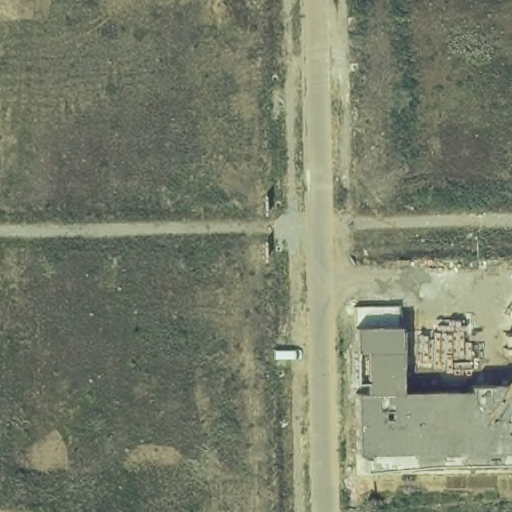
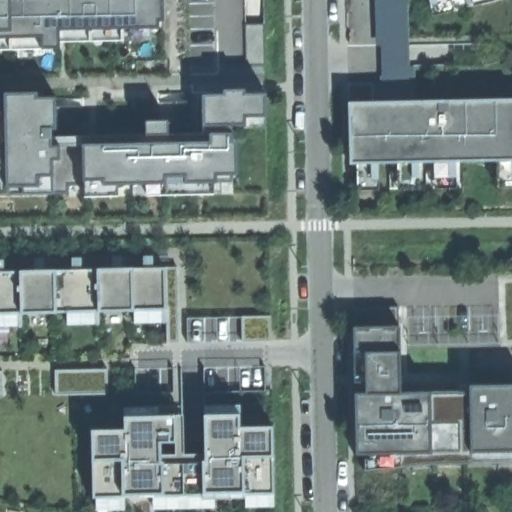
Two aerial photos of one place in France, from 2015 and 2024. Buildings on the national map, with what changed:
new [(165,26),(160,26),(160,33),(152,34),(152,45),(61,47),(60,53),(42,54),(41,42),(0,43),(0,0),(164,0),(165,26)]
new [(387,82),(387,46),(375,45),(375,0),(407,0),(408,37),(413,38),(415,100),(512,99),(512,186),(497,186),(497,161),(456,162),(456,187),(436,188),(435,162),(420,163),(419,188),(399,189),(398,163),(378,163),(378,189),(358,189),(357,164),(350,164),(348,84),(387,82)]
new [(454,10),(434,15),(430,0),(452,0),(454,10)]
new [(495,0),(475,5),(473,0),(494,0),(495,0)]
new [(265,24),(265,65),(247,65),(245,24),(265,24)]
new [(482,44),(483,63),(455,64),(454,45),(482,44)]
new [(5,98),(7,97),(7,93),(40,93),(41,97),(56,96),(57,129),(52,130),(52,136),(145,134),(147,120),(168,120),(170,134),(203,133),(202,94),(223,94),(223,89),(245,89),(246,93),(267,93),(267,123),(232,125),(233,182),(222,182),(222,194),(148,195),(147,184),(118,184),(118,196),(85,197),(84,185),(70,185),(69,194),(0,195),(0,110),(5,109),(5,98)]
new [(180,343),(167,343),(166,310),(162,310),(162,322),(135,323),(134,310),(95,311),(95,324),(68,325),(67,312),(23,313),(22,326),(0,326),(0,271),(178,267),(180,343)]
unchanged [(398,306),(402,391),(468,390),(470,385),(512,384),(512,463),(432,464),(365,471),(363,458),(368,457),(368,455),(356,454),(355,393),(365,392),(366,383),(355,382),(354,307),(398,306)]
new [(271,315),(272,341),(187,342),(187,317),(271,315)]
new [(265,366),(266,391),(205,392),(204,368),(265,366)]
new [(173,367),(174,392),(135,393),(135,368),(173,367)]
new [(55,369),(107,369),(108,393),(55,394),(55,369)]
new [(3,396),(0,396),(0,371),(3,371),(3,396)]
new [(125,429),(125,407),(167,405),(167,397),(172,397),(173,405),(176,405),(176,414),(183,414),(184,453),(205,453),(205,405),(240,404),(240,426),(273,426),(274,506),(246,507),(245,494),(215,495),(214,507),(188,508),(187,496),(180,495),(180,508),(125,509),(125,497),(120,497),(120,509),(97,510),(97,498),(93,497),(92,429),(125,429)]

